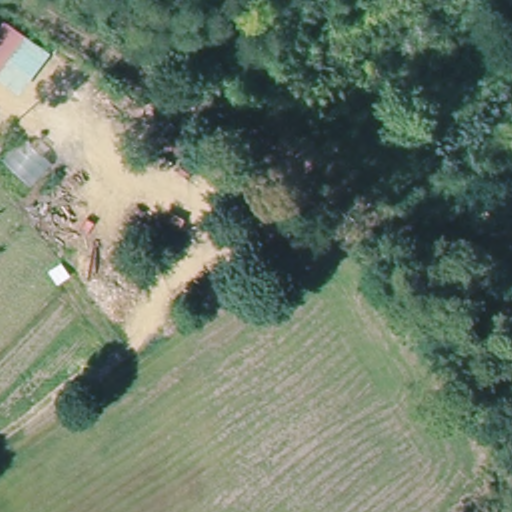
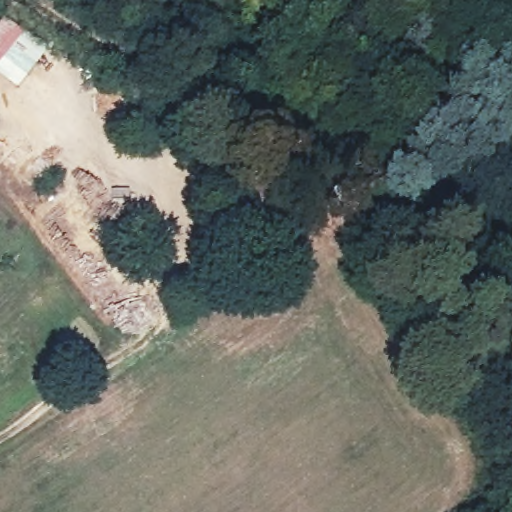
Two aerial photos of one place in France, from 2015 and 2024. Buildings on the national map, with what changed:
unchanged [(7,16),(51,51),(34,74),(11,58),(0,71),(0,26),(7,16)]

